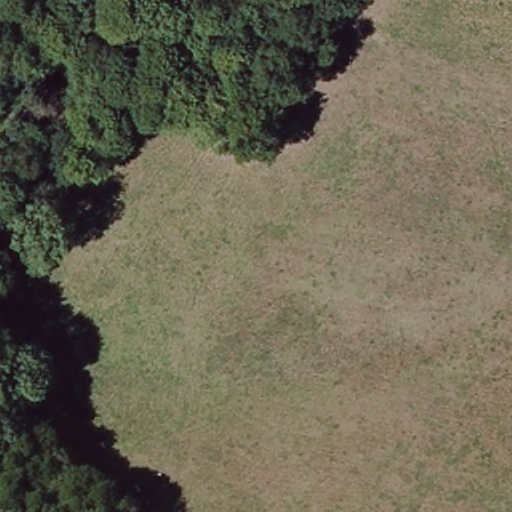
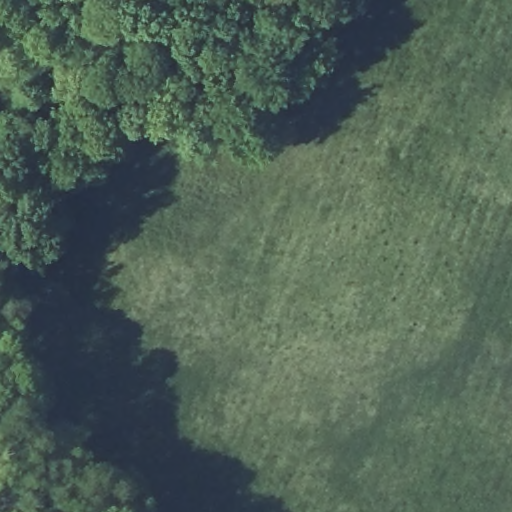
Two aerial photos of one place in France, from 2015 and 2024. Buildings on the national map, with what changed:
[]

